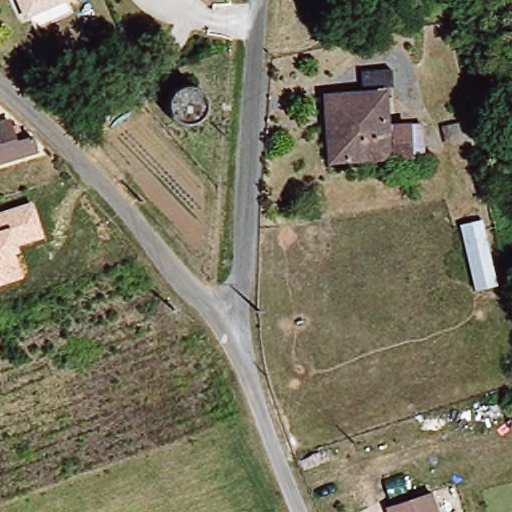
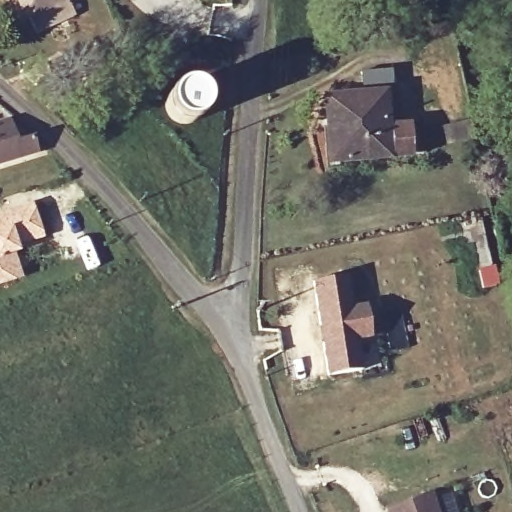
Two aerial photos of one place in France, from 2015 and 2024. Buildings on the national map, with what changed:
unchanged [(20,17),(18,12),(13,0),(54,0),(20,17)]
unchanged [(144,50),(173,40),(177,56),(149,65),(144,50)]
unchanged [(79,67),(95,59),(104,78),(88,86),(79,67)]
unchanged [(393,75),(363,80),(361,66),(391,62),(393,75)]
unchanged [(319,109),(373,100),(382,158),(334,166),(328,124),(321,126),(319,109)]
unchanged [(0,165),(0,126),(5,125),(11,147),(29,142),(34,156),(15,161),(0,165)]
unchanged [(387,130),(407,127),(409,155),(390,157),(387,130)]
unchanged [(44,239),(18,247),(20,252),(15,255),(23,280),(0,287),(0,212),(33,202),(44,239)]
unchanged [(472,293),(457,225),(479,221),(495,287),(472,293)]
new [(348,276),(352,306),(366,303),(371,338),(358,340),(363,367),(324,373),(312,281),(348,276)]
unchanged [(423,493),(428,512),(387,512),(386,505),(423,493)]

